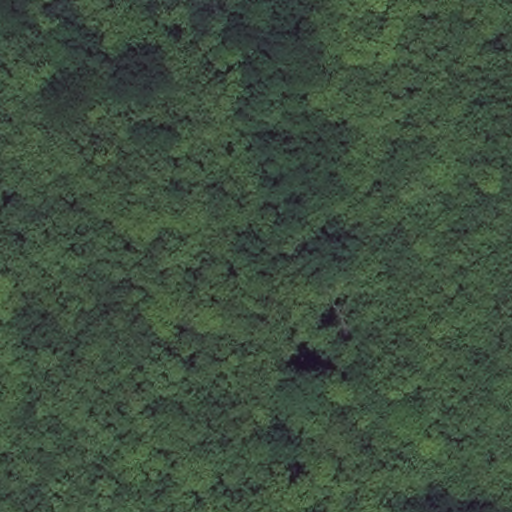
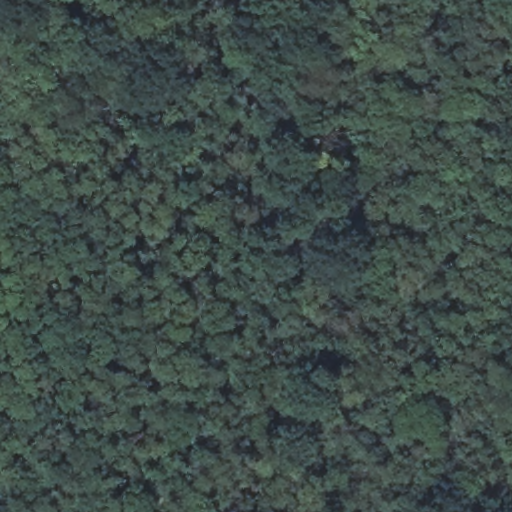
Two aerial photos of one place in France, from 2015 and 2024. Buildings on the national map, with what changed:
[]

